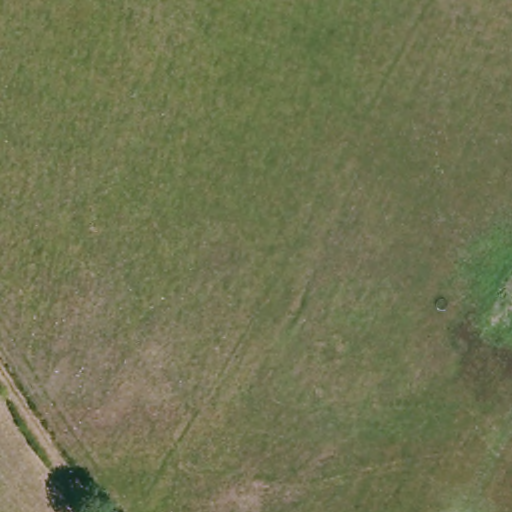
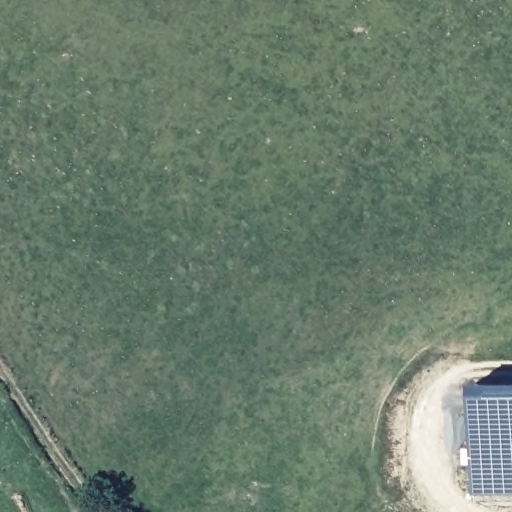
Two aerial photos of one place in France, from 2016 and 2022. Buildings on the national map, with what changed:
new [(512,384),(512,495),(475,495),(475,385),(512,384)]

